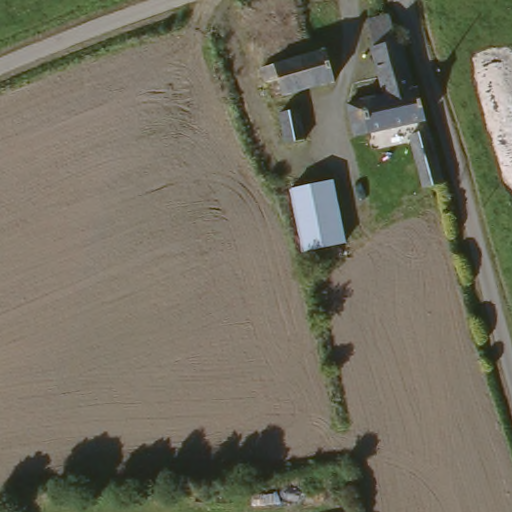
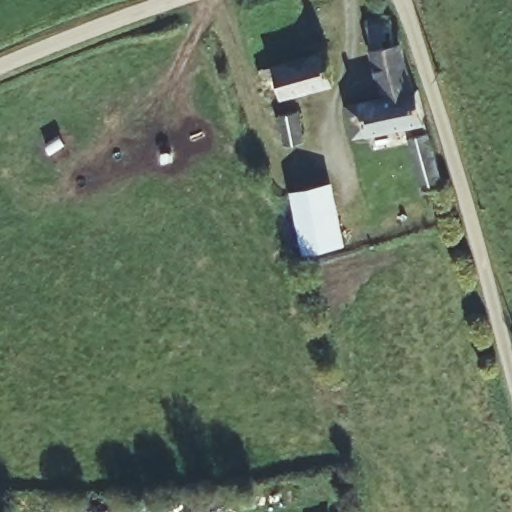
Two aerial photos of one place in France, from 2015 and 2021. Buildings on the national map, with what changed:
unchanged [(424,187),(411,190),(399,143),(413,140),(409,125),(351,140),(339,96),(376,87),(364,42),(370,41),(363,13),(381,8),(388,37),(396,34),(404,65),(408,81),(413,80),(427,125),(444,182),(437,184),(434,184),(424,187)]
unchanged [(346,82),(314,88),(261,97),(254,61),(340,46),(346,82)]
unchanged [(298,138),(287,141),(278,107),(299,103),(308,136),(298,138)]
unchanged [(342,240),(314,248),(303,194),(330,188),(342,240)]

